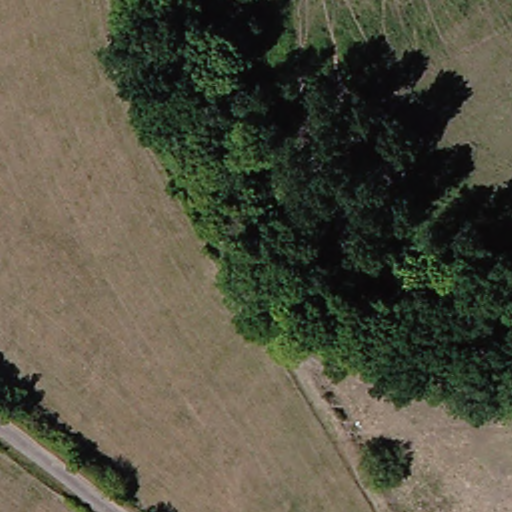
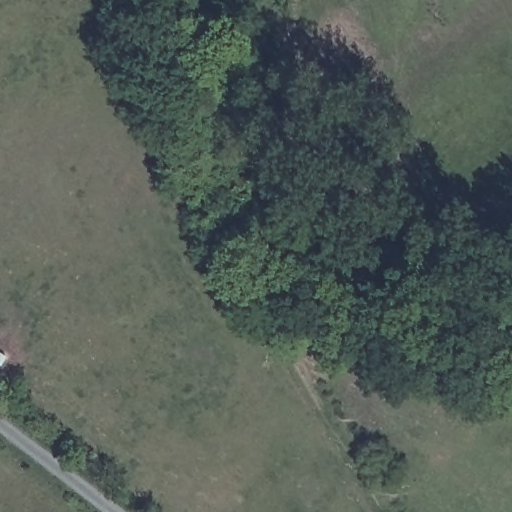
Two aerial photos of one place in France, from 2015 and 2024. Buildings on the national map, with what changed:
[]

